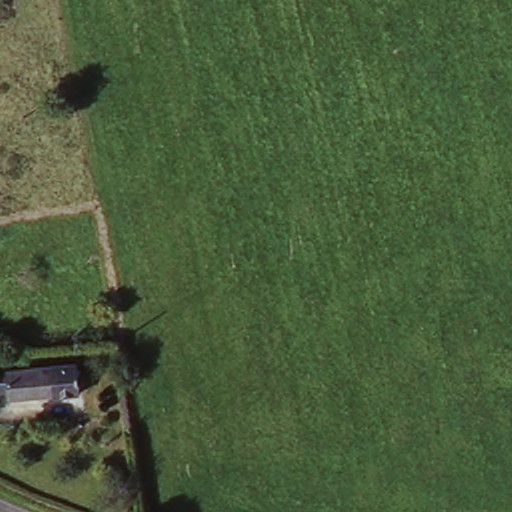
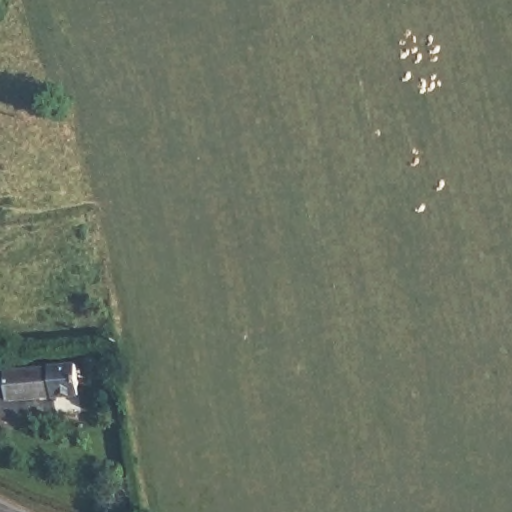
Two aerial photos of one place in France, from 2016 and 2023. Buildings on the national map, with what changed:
unchanged [(79,362),(80,364),(81,392),(11,396),(11,392),(0,393),(0,369),(79,362)]

